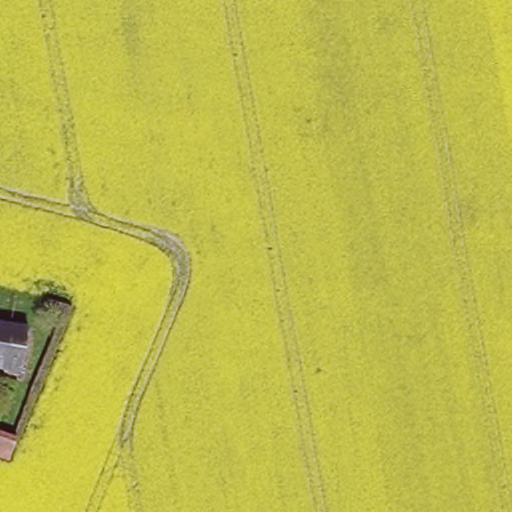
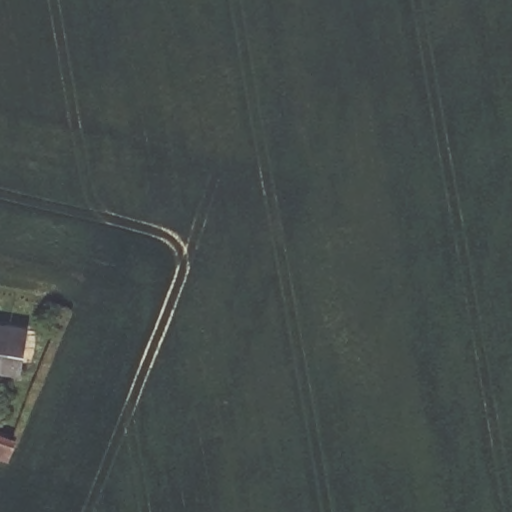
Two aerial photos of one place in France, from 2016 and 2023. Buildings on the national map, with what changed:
unchanged [(17,368),(0,366),(0,319),(25,323),(17,368)]
unchanged [(19,455),(0,449),(0,432),(25,440),(19,455)]

